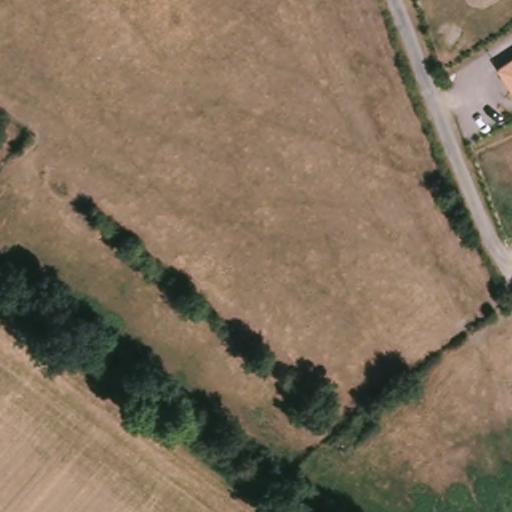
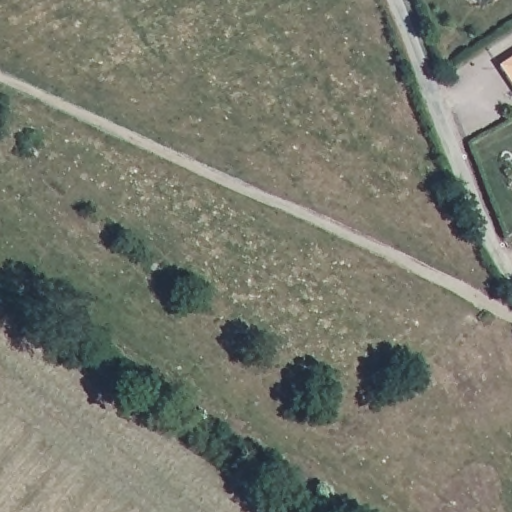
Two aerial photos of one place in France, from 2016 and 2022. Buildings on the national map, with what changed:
unchanged [(512,59),(512,86),(499,67),(512,59)]

